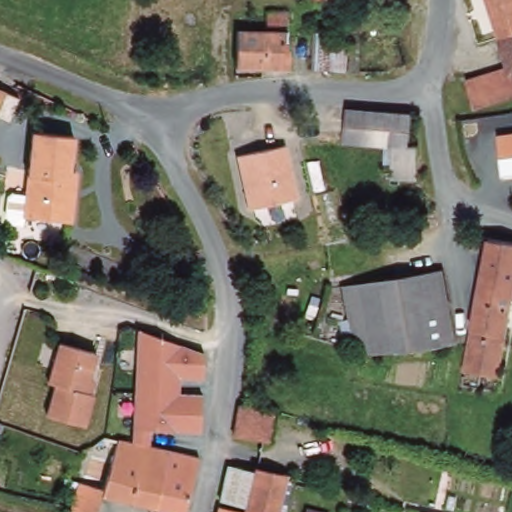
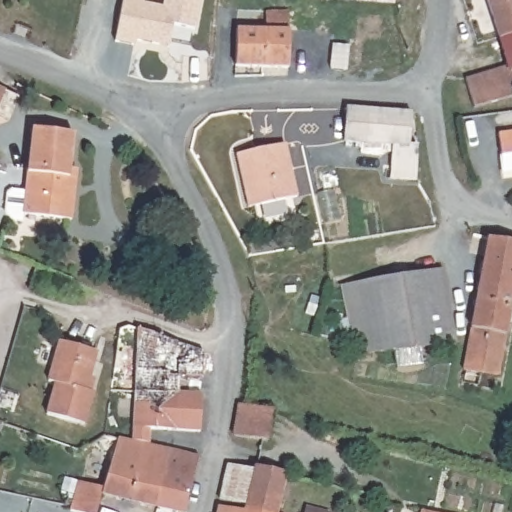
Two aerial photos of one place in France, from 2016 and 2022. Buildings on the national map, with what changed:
new [(144,3),(163,7),(164,0),(202,0),(197,28),(172,23),(169,46),(135,39),(134,46),(115,42),(123,0),(145,0),(144,3)]
unchanged [(357,1),(344,0),(394,0),(394,4),(357,1)]
unchanged [(474,109),(466,79),(508,67),(499,37),(487,0),(512,0),(512,97),(474,109)]
unchanged [(237,30),(264,31),(266,12),(289,11),(289,31),(288,68),(235,66),(237,30)]
unchanged [(334,70),(318,70),(319,31),(338,33),(334,70)]
unchanged [(338,45),(354,47),(351,71),(335,69),(338,45)]
unchanged [(0,104),(0,89),(5,91),(0,104)]
unchanged [(391,178),(384,145),(344,142),(347,108),(412,114),(409,144),(418,145),(417,179),(391,178)]
unchanged [(70,221),(23,216),(22,223),(12,222),(4,214),(7,195),(11,192),(25,193),(31,131),(73,135),(69,171),(75,172),(73,198),(70,221)]
unchanged [(512,133),(512,174),(503,175),(498,135),(512,133)]
unchanged [(236,155),(285,144),(297,197),(248,208),(236,155)]
unchanged [(498,378),(463,371),(488,238),(512,243),(512,298),(498,378)]
unchanged [(462,343),(399,352),(399,350),(361,356),(359,347),(351,346),(347,321),(353,319),(346,285),(448,270),(462,343)]
unchanged [(203,379),(178,378),(179,392),(201,393),(199,433),(149,430),(149,445),(130,441),(136,328),(204,353),(203,379)]
unchanged [(90,393),(93,393),(84,425),(46,415),(55,384),(48,382),(59,342),(96,353),(89,379),(94,381),(90,393)]
unchanged [(273,410),(269,441),(234,436),(239,404),(273,410)]
unchanged [(103,495),(97,512),(74,512),(70,511),(71,506),(79,481),(103,489),(118,439),(169,450),(156,507),(103,495)]
unchanged [(178,512),(156,507),(169,450),(199,457),(184,512),(178,512)]
unchanged [(276,512),(246,512),(244,511),(244,506),(220,501),(228,466),(253,471),(254,467),(286,473),(276,512)]
unchanged [(244,511),(246,512),(217,512),(219,506),(244,511)]

